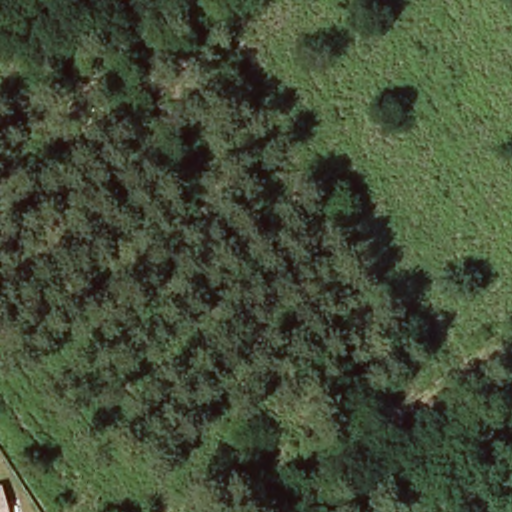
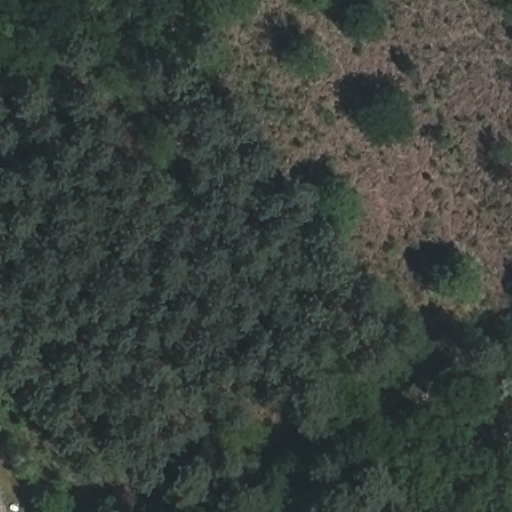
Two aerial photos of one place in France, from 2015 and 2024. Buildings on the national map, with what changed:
unchanged [(0,493),(5,512),(0,512),(0,493)]

